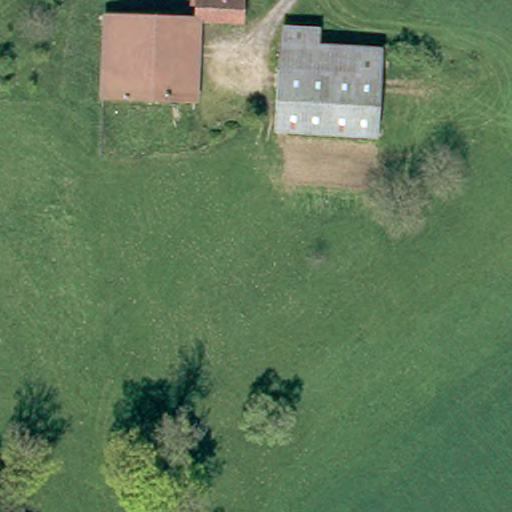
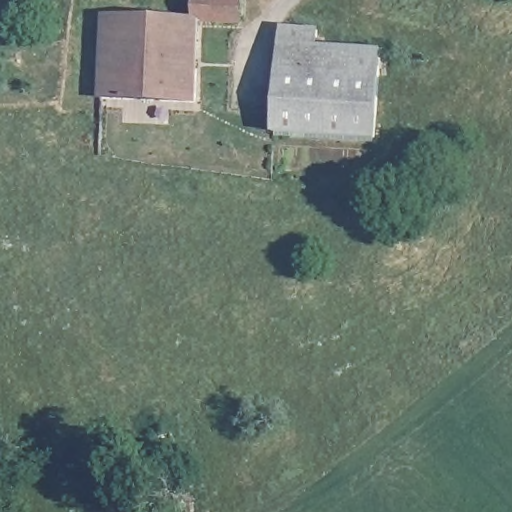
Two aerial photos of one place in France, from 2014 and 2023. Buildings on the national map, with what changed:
unchanged [(194,6),(190,6),(190,0),(240,0),(240,19),(198,19),(195,102),(98,102),(101,16),(194,19),(194,6)]
unchanged [(275,132),(278,97),(282,52),(285,52),(286,39),(287,32),(291,32),(320,35),(320,42),(319,44),(381,49),(383,50),(382,63),(375,140),(275,132)]

